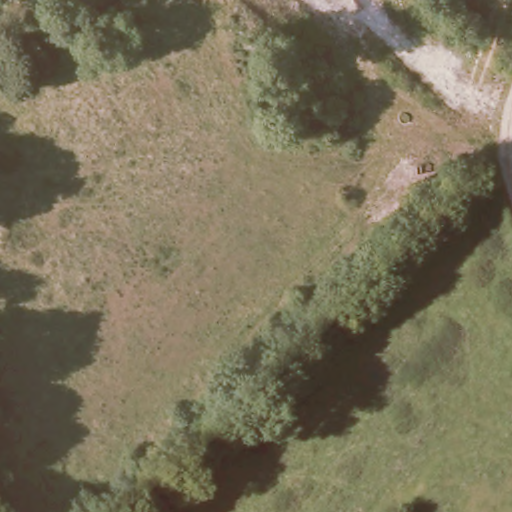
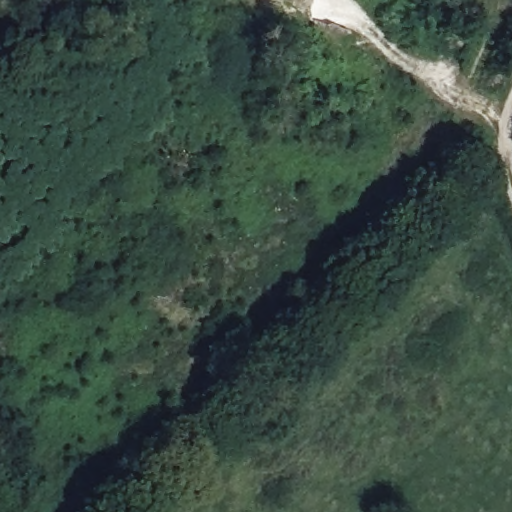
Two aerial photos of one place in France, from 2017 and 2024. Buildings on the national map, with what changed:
unchanged [(52,0),(65,0),(62,6),(52,0)]

